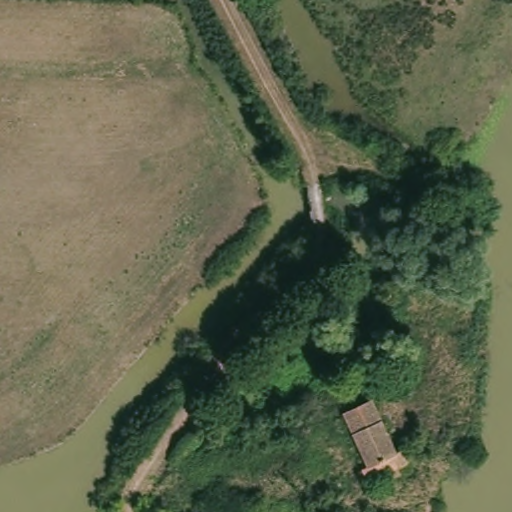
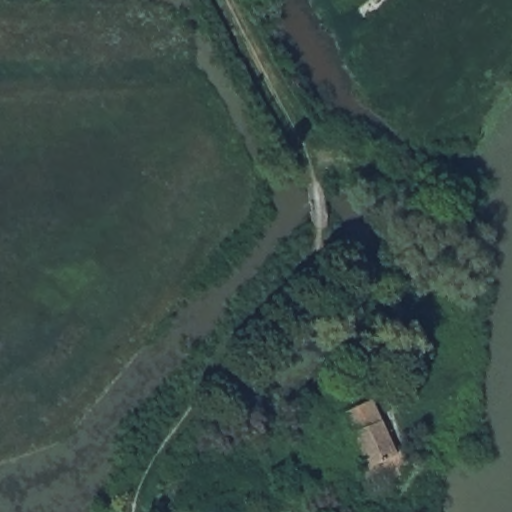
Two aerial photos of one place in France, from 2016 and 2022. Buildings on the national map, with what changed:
unchanged [(394,455),(400,453),(412,479),(399,485),(393,472),(370,481),(360,464),(363,462),(343,415),(370,403),(394,455)]

